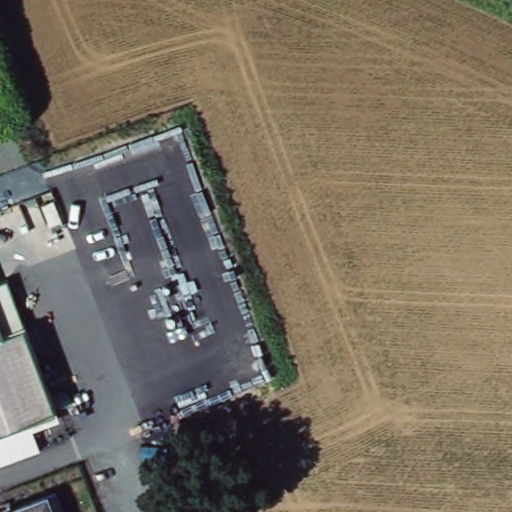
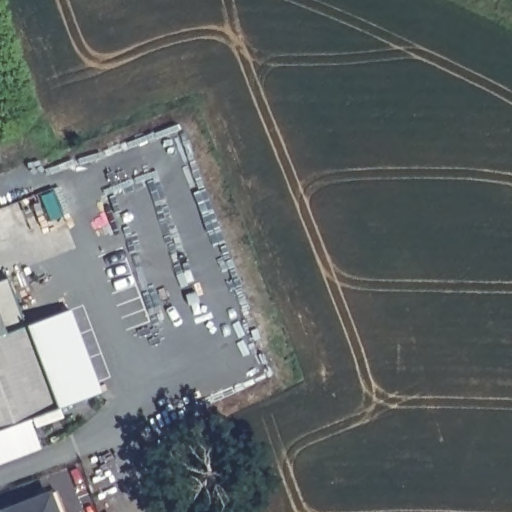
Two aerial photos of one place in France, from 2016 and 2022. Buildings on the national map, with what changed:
unchanged [(7,276),(26,323),(55,407),(0,427),(0,334),(3,332),(0,325),(0,279),(7,276)]
new [(70,308),(100,390),(55,407),(26,323),(70,308)]
unchanged [(3,332),(0,334),(0,325),(3,332)]
new [(60,419),(33,428),(41,450),(0,465),(0,427),(55,407),(60,419)]
unchanged [(54,492),(62,512),(2,512),(54,492)]

